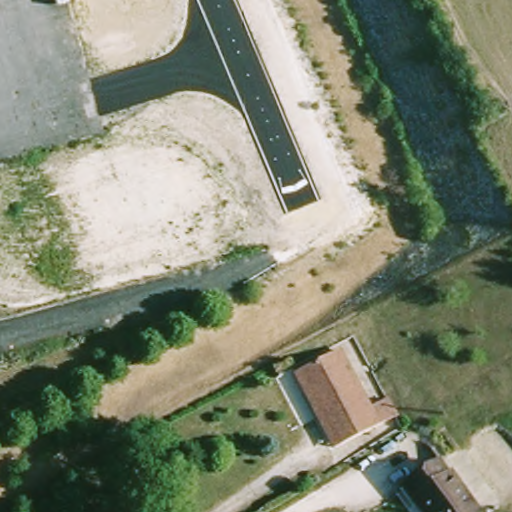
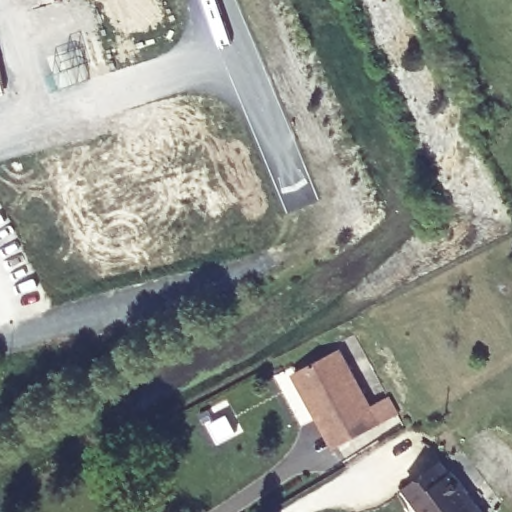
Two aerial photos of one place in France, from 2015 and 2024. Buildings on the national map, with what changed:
unchanged [(304,397),(295,378),(339,356),(370,415),(388,405),(396,420),(345,447),(333,452),(304,397)]
unchanged [(418,500),(408,487),(414,482),(437,465),(446,477),(452,473),(483,512),(427,512),(418,500)]

